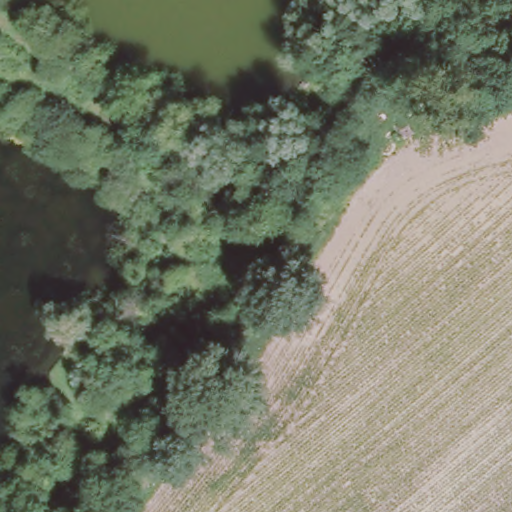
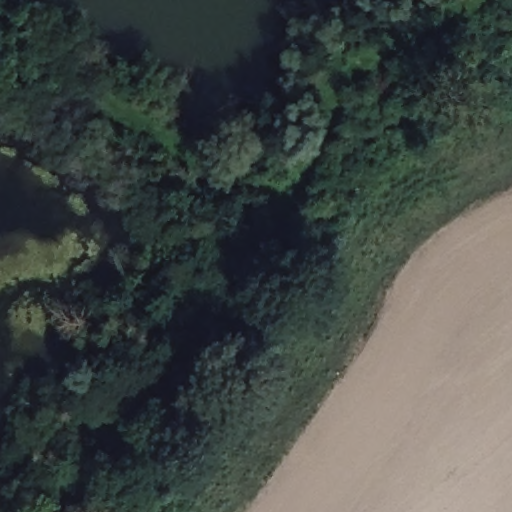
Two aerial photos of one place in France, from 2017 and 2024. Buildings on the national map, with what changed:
[]

